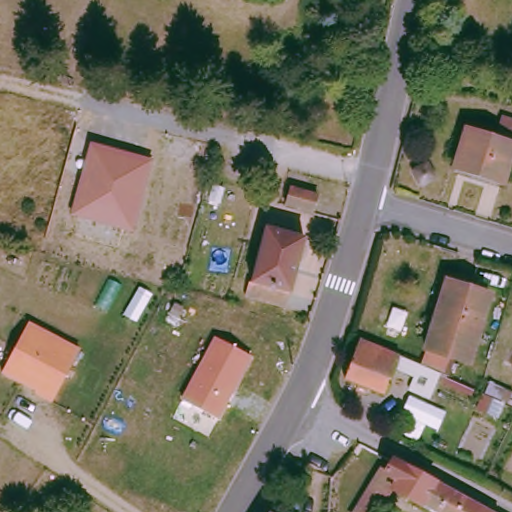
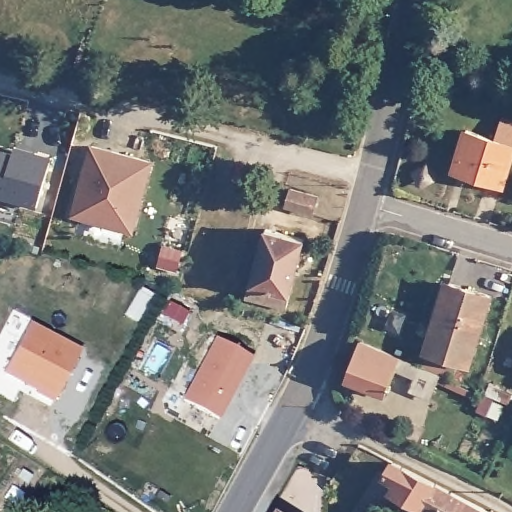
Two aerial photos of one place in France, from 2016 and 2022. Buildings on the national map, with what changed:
unchanged [(502,179),(454,164),(466,125),(495,134),(502,114),(512,116),(512,148),(502,179)]
unchanged [(153,159),(133,233),(70,216),(90,143),(153,159)]
new [(15,146),(53,156),(36,208),(0,197),(0,148),(14,152),(15,146)]
unchanged [(293,189),(308,194),(304,211),(288,206),(293,189)]
unchanged [(254,230),(250,245),(243,243),(247,228),(254,230)]
unchanged [(302,238),(285,307),(247,297),(263,228),(302,238)]
unchanged [(468,364),(428,351),(450,282),(490,295),(468,364)]
unchanged [(32,392),(35,386),(2,367),(28,320),(81,347),(51,401),(32,392)]
unchanged [(180,397),(215,333),(253,353),(220,418),(180,397)]
unchanged [(391,353),(433,371),(424,391),(407,383),(410,374),(391,365),(381,391),(341,375),(355,337),(391,353)]
unchanged [(441,512),(393,486),(387,494),(384,492),(371,512),(353,512),(352,512),(370,483),(381,465),(385,467),(392,456),(447,485),(482,503),(499,512),(441,512)]

